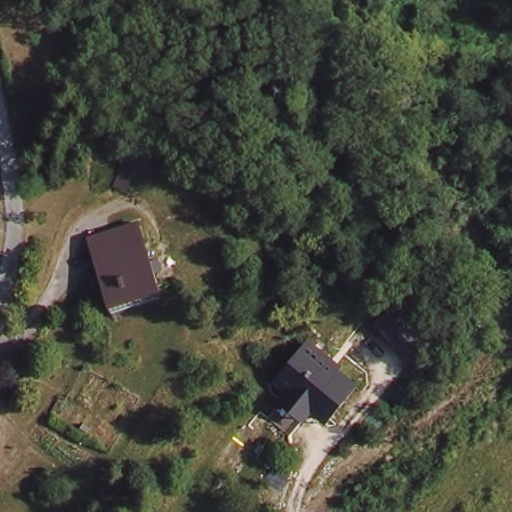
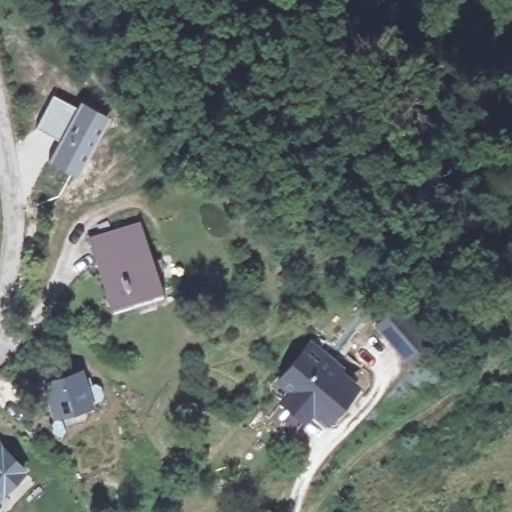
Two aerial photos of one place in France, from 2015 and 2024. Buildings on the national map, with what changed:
new [(52,93),(77,105),(58,140),(35,128),(52,93)]
new [(58,140),(77,105),(80,99),(108,114),(76,177),(47,162),(58,140)]
unchanged [(135,137),(127,171),(108,166),(117,132),(135,137)]
unchanged [(139,221),(163,299),(111,315),(87,236),(139,221)]
unchanged [(400,299),(433,337),(408,357),(376,322),(400,299)]
unchanged [(288,404),(292,399),(295,394),(284,385),(315,347),(330,359),(327,363),(357,388),(330,421),(320,412),(310,423),(288,404)]
new [(82,369),(93,406),(52,419),(42,381),(82,369)]
new [(10,444),(7,448),(27,470),(8,489),(13,493),(0,507),(0,434),(10,444)]

